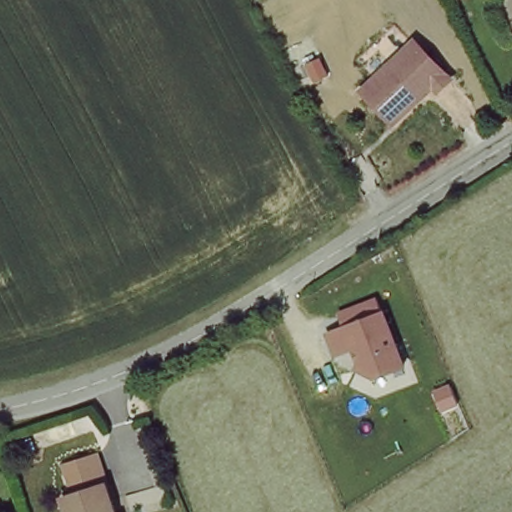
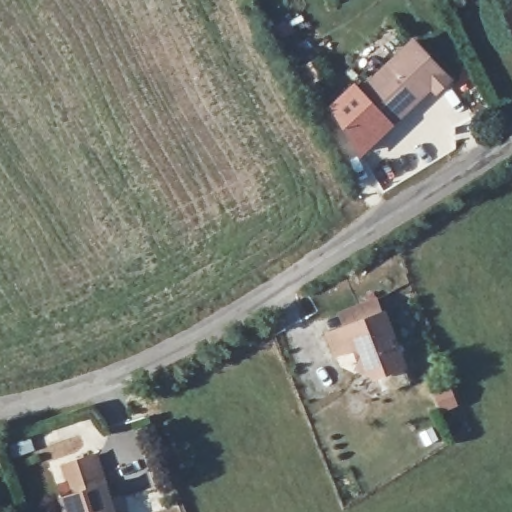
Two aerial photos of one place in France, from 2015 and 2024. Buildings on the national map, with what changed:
unchanged [(417,43),(449,81),(436,93),(433,89),(393,124),(365,93),(417,43)]
new [(355,83),(365,93),(393,124),(395,125),(359,157),(331,105),(355,83)]
unchanged [(355,370),(358,357),(353,350),(332,357),(324,334),(342,327),(337,311),(377,295),(385,311),(407,366),(376,379),(355,370)]
unchanged [(104,486),(70,497),(61,464),(95,452),(104,486)]
unchanged [(70,497),(104,486),(112,512),(63,512),(59,500),(70,497)]

